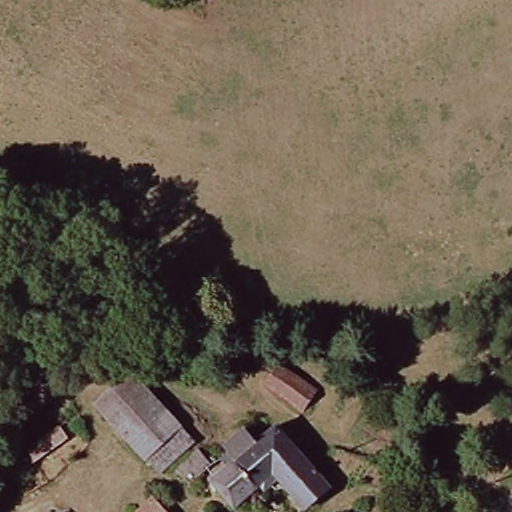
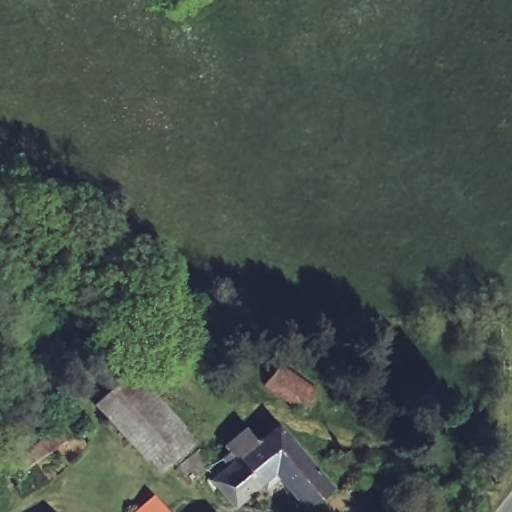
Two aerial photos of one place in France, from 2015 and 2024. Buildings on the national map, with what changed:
unchanged [(315,392),(300,411),(265,384),(280,366),(315,392)]
unchanged [(163,474),(97,406),(135,370),(200,438),(163,474)]
unchanged [(369,422),(356,443),(335,431),(347,410),(369,422)]
unchanged [(20,463),(48,440),(63,427),(76,442),(60,455),(32,478),(20,463)]
unchanged [(235,508),(215,486),(278,429),(330,487),(306,510),(271,476),(235,508)]
unchanged [(166,512),(147,512),(158,502),(166,512)]

